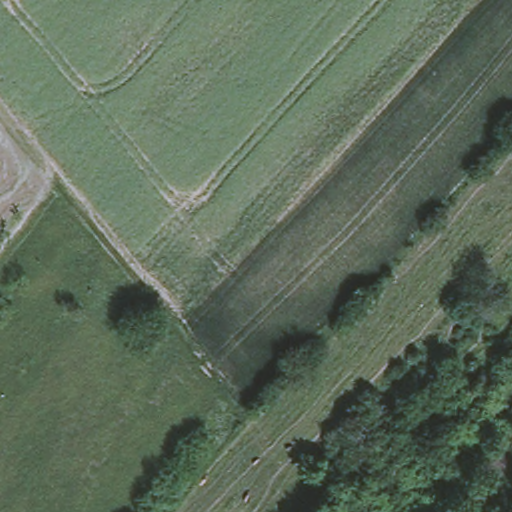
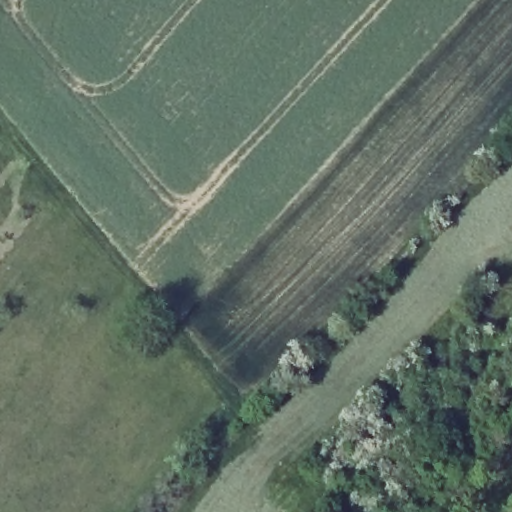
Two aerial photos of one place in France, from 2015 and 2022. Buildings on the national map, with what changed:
unchanged [(130,319),(146,327),(135,357),(118,347),(130,319)]

